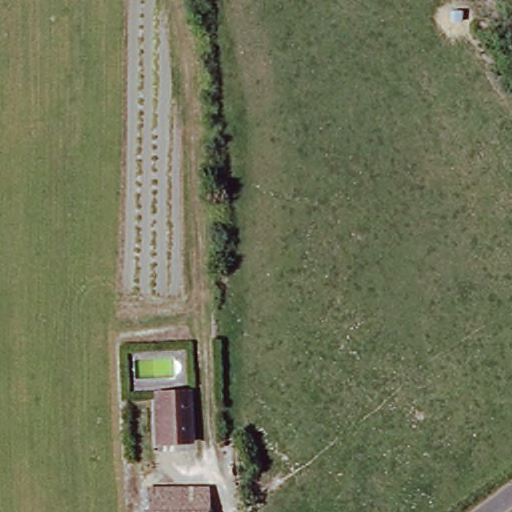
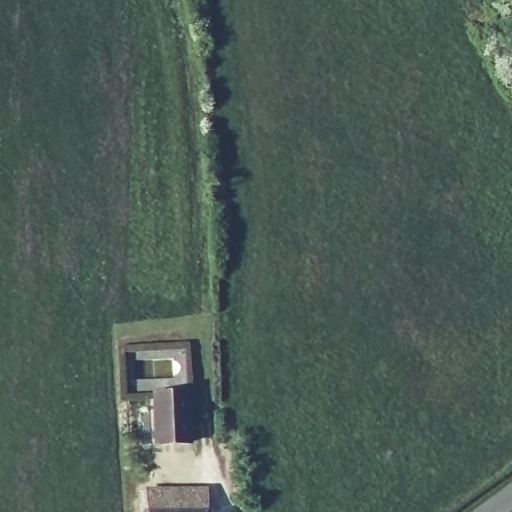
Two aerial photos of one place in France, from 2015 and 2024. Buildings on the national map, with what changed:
unchanged [(156,443),(153,396),(185,395),(189,442),(156,443)]
unchanged [(209,491),(207,511),(210,510),(210,512),(147,512),(147,491),(209,491)]

